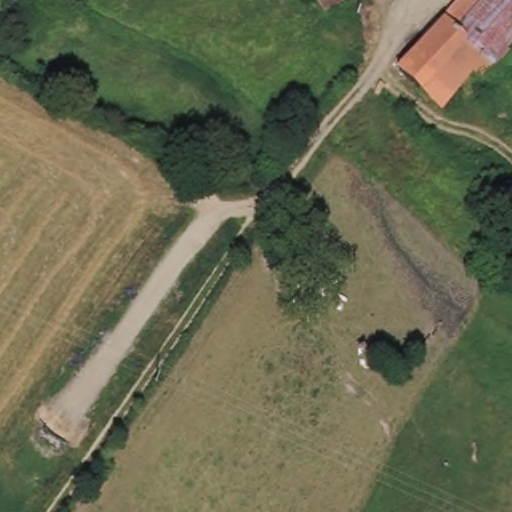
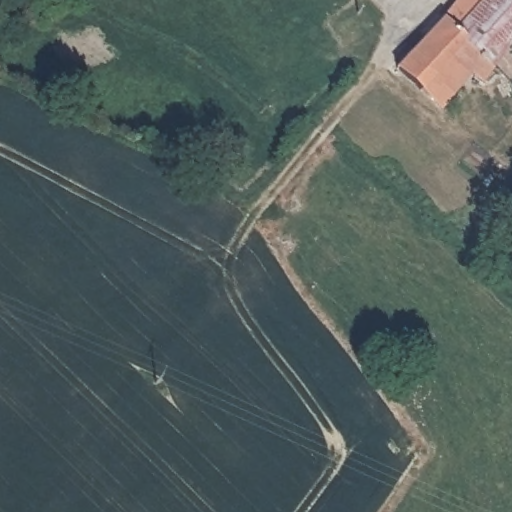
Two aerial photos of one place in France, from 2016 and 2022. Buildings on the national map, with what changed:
unchanged [(312,0),(343,0),(318,11),(312,0)]
unchanged [(498,61),(512,73),(512,107),(478,77),(447,112),(397,69),(457,0),(512,0),(512,46),(498,61)]

